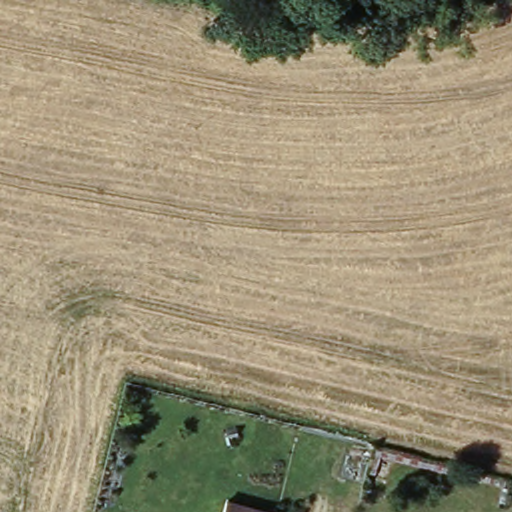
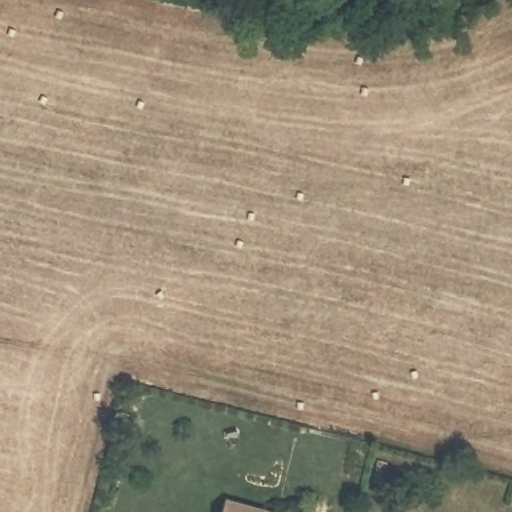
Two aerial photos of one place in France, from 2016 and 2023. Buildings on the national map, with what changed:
unchanged [(274,512),(229,512),(232,502),(274,512)]

